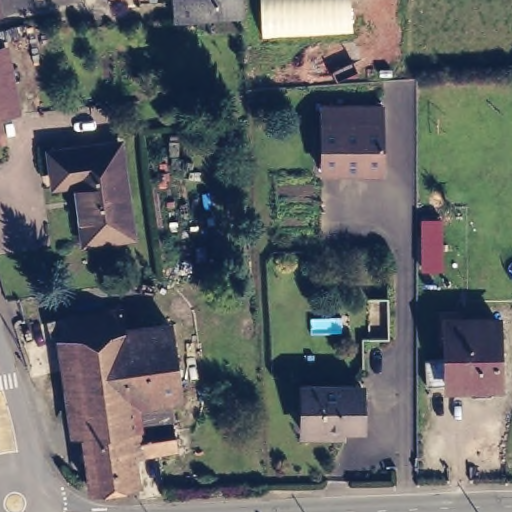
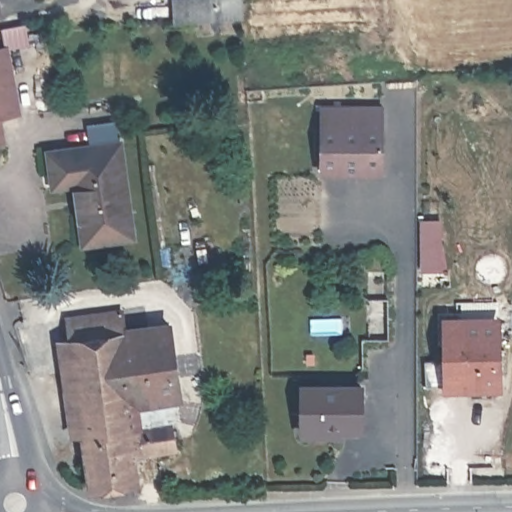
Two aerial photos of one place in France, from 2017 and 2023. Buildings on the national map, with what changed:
new [(173,23),(172,0),(244,0),(245,17),(173,23)]
demolished [(200,0),(232,0),(233,20),(202,22),(200,0)]
new [(262,40),(260,0),(352,0),(355,35),(262,40)]
unchanged [(18,107),(0,110),(0,45),(7,45),(18,107)]
unchanged [(380,103),(381,169),(320,169),(320,103),(380,103)]
unchanged [(0,124),(2,135),(0,135),(0,124)]
unchanged [(122,141),(136,235),(91,241),(85,199),(80,200),(78,184),(55,185),(51,150),(122,141)]
unchanged [(137,402),(140,422),(176,417),(180,447),(139,453),(142,481),(95,488),(70,315),(110,310),(113,330),(173,322),(183,395),(137,402)]
unchanged [(462,317),(462,325),(502,326),(502,388),(452,388),(450,348),(443,348),(442,316),(462,317)]
unchanged [(360,386),(359,425),(301,425),(302,385),(360,386)]

